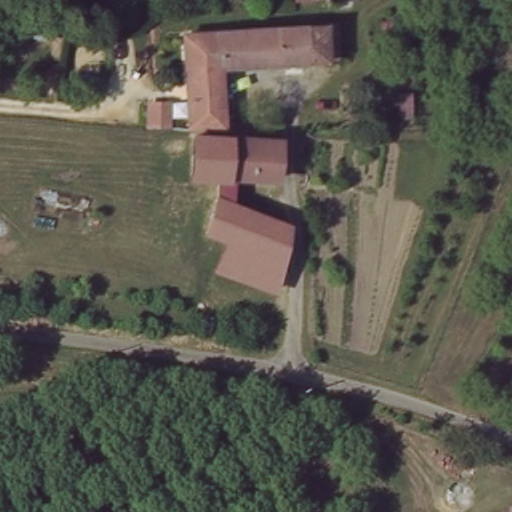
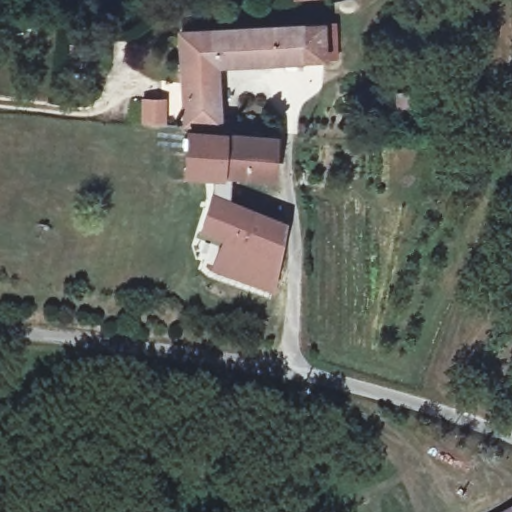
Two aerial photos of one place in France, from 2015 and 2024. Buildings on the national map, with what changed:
unchanged [(296,0),(313,0),(296,2),(296,0)]
unchanged [(218,72),(220,126),(187,129),(180,32),(324,22),(327,61),(218,72)]
unchanged [(217,234),(208,231),(211,203),(215,203),(217,179),(191,175),(194,137),(277,146),(273,185),(231,180),(229,215),(281,230),(278,249),(217,234)]
unchanged [(274,290),(214,272),(217,234),(278,249),(274,290)]
unchanged [(510,511),(510,512),(508,512),(510,511)]

